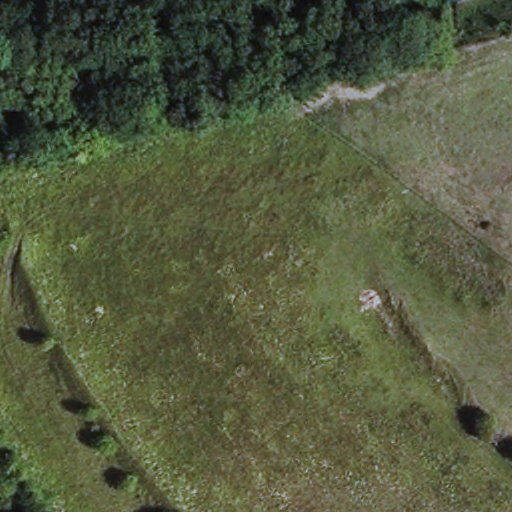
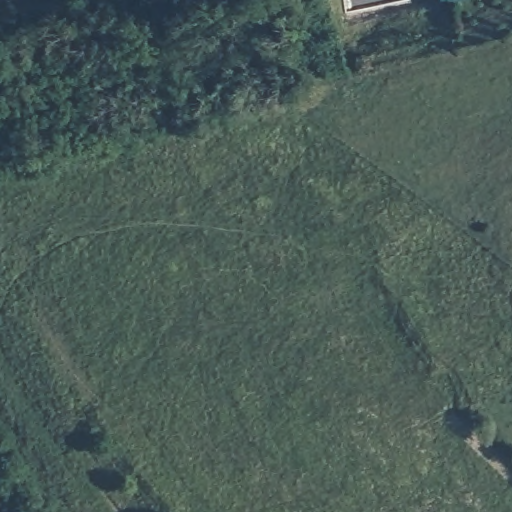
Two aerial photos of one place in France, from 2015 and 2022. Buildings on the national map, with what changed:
new [(342,10),(341,0),(421,0),(342,10)]

